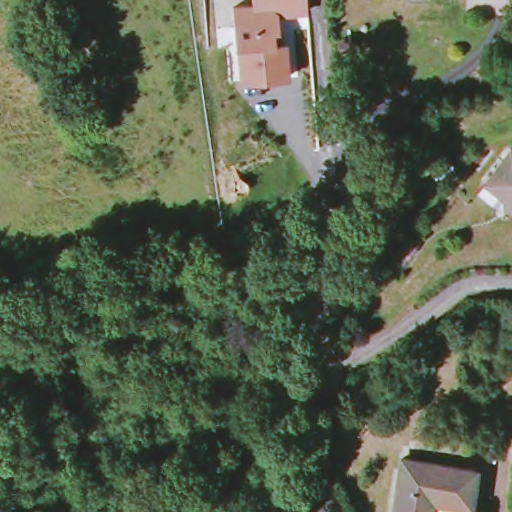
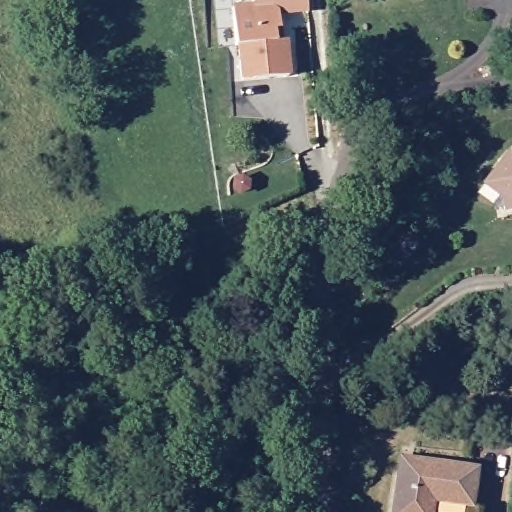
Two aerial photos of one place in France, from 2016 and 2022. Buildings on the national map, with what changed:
unchanged [(252,5),(251,0),(304,0),(305,10),(276,15),(275,12),(277,29),(278,40),(283,40),(287,77),(242,82),(238,46),(235,46),(230,7),(265,4),(252,5)]
unchanged [(485,184),(512,152),(512,212),(507,212),(507,205),(497,209),(477,194),(485,184)]
unchanged [(399,460),(476,473),(470,506),(430,500),(428,512),(391,512),(399,460)]

